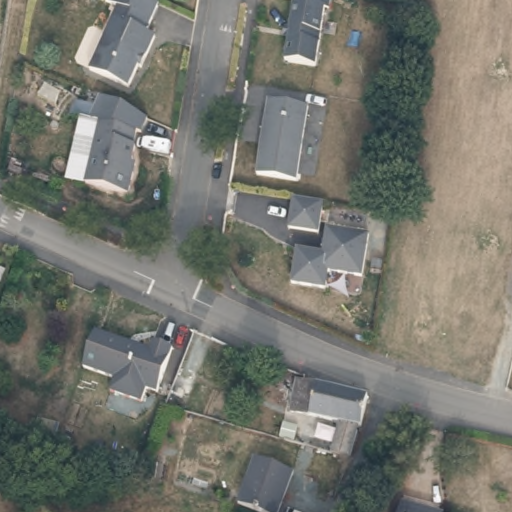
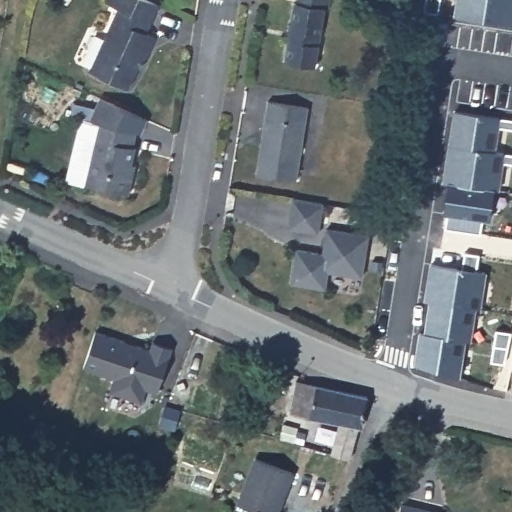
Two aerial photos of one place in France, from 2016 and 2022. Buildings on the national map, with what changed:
unchanged [(154,35),(140,65),(134,63),(123,83),(95,72),(124,8),(112,2),(113,0),(154,0),(159,2),(145,32),(154,35)]
unchanged [(321,5),(312,61),(281,57),(292,0),(326,0),(325,4),(321,5)]
unchanged [(311,102),(297,175),(256,167),(271,94),(311,102)]
unchanged [(87,132),(68,127),(75,112),(92,121),(98,109),(145,129),(139,143),(135,142),(129,174),(135,175),(127,205),(85,196),(98,134),(87,132)]
new [(498,117),(492,152),(501,153),(497,190),(490,190),(486,220),(443,212),(448,182),(442,181),(453,111),(498,117)]
unchanged [(315,228),(286,222),(290,192),(322,199),(315,228)]
unchanged [(368,232),(360,271),(328,267),(322,286),(288,278),(295,244),(319,249),(326,224),(368,232)]
new [(483,272),(478,307),(473,307),(468,342),(423,336),(428,303),(423,302),(430,263),(483,272)]
unchanged [(127,342),(140,347),(142,347),(152,351),(155,342),(175,348),(160,393),(149,390),(145,403),(128,398),(112,393),(117,380),(86,370),(90,356),(97,333),(127,342)]
unchanged [(288,402),(296,377),(306,380),(333,390),(324,416),(288,402)]
unchanged [(337,421),(324,416),(333,390),(365,402),(352,451),(347,468),(345,467),(326,462),(330,448),(337,421)]
unchanged [(53,464),(0,452),(0,424),(59,437),(53,464)]
unchanged [(250,481),(255,467),(287,480),(285,487),(278,503),(244,498),(250,481)]
unchanged [(398,505),(420,509),(436,512),(397,512),(398,505)]

